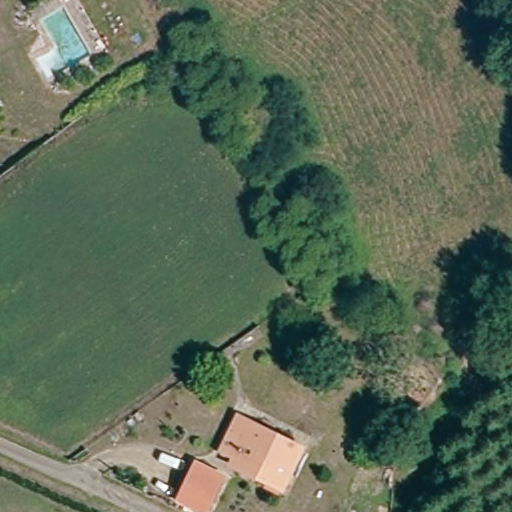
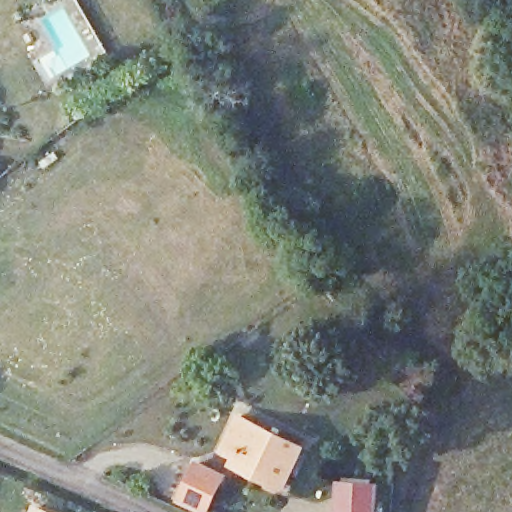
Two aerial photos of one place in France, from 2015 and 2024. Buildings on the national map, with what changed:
unchanged [(232,449),(219,442),(241,407),(301,447),(274,488),(258,479),(226,459),(232,449)]
unchanged [(189,468),(218,479),(207,505),(179,494),(189,468)]
new [(376,512),(336,512),(338,483),(377,485),(376,512)]

